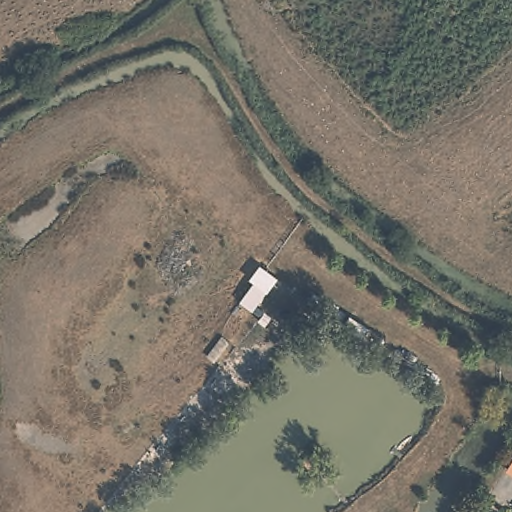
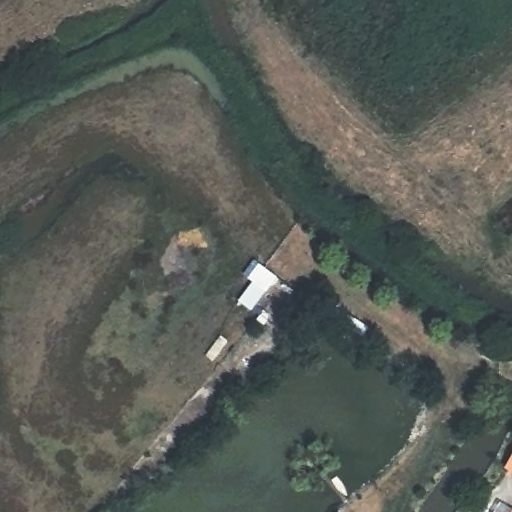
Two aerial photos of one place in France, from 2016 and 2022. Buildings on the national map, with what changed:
unchanged [(504,468),(512,456),(512,473),(504,468)]

